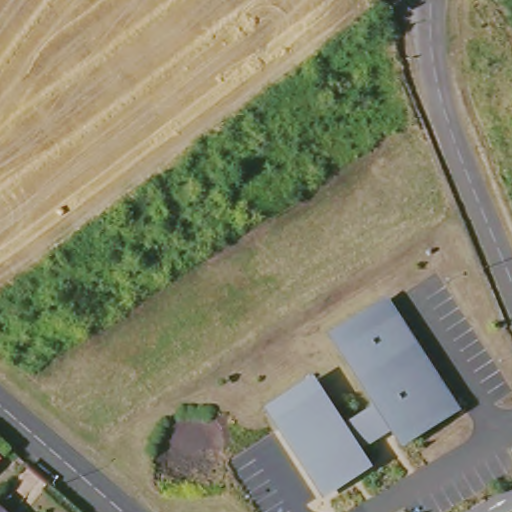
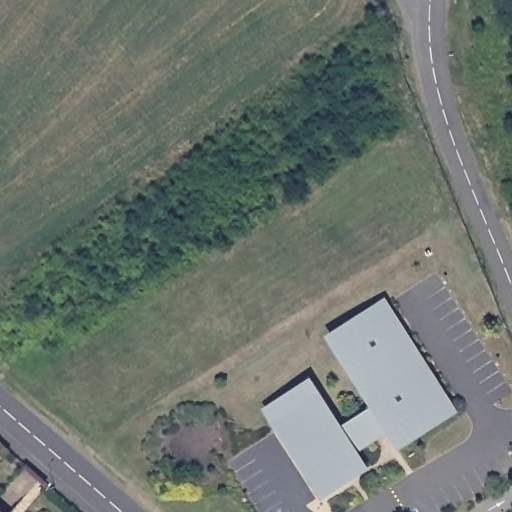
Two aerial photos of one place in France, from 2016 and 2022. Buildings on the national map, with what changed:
unchanged [(342,431),(376,408),(345,359),(331,338),(387,303),(400,324),(396,327),(397,327),(417,360),(422,357),(435,377),(435,378),(432,380),(441,392),(443,391),(457,412),(435,425),(433,422),(420,431),(422,433),(400,447),(387,426),(352,447),(360,458),(366,468),(335,487),(312,483),(297,460),(265,411),(311,382),(342,431)]
unchanged [(0,464),(0,460),(2,462),(0,464)]
unchanged [(0,512),(0,511),(2,512),(0,512)]

